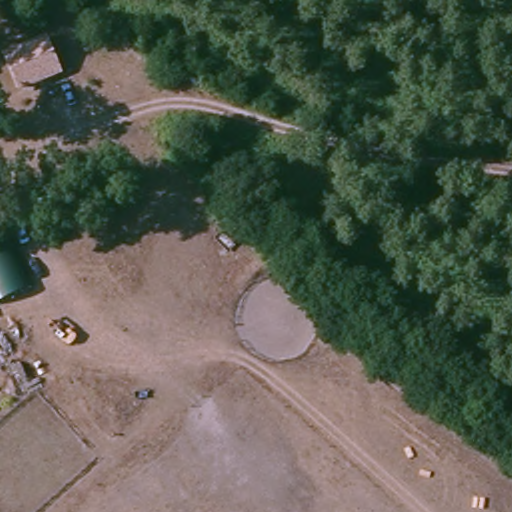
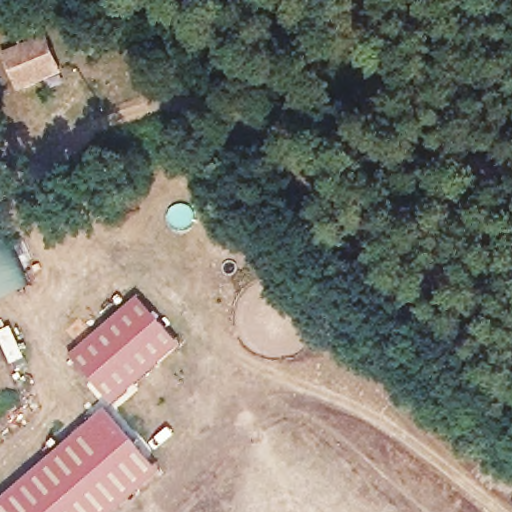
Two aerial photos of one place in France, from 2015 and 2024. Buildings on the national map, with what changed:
unchanged [(2,52),(47,35),(62,74),(19,90),(2,52)]
unchanged [(4,215),(35,283),(0,301),(0,217),(4,215)]
new [(182,346),(113,405),(71,355),(139,297),(182,346)]
new [(117,512),(0,512),(0,501),(106,410),(162,473),(117,512)]

